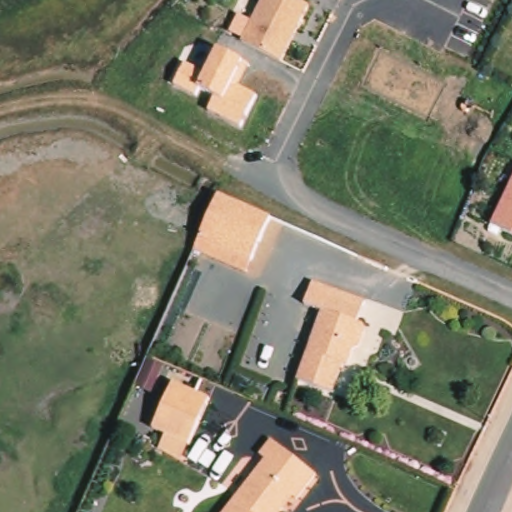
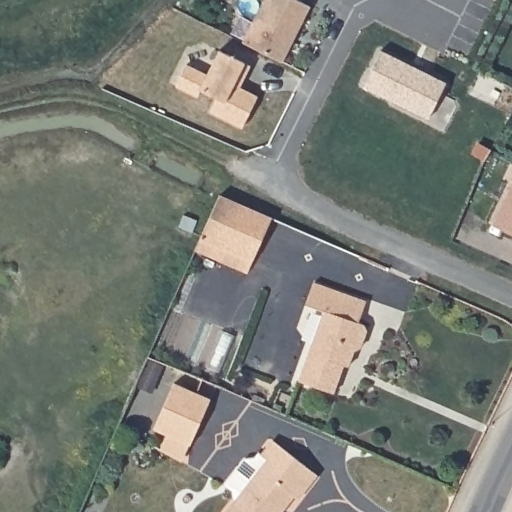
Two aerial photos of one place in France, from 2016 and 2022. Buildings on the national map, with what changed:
unchanged [(310,7),(281,63),(239,41),(261,0),(296,0),(310,7)]
new [(380,50),(445,83),(427,119),(362,86),(380,50)]
unchanged [(207,73),(216,51),(248,66),(239,87),(256,96),(241,127),(209,113),(215,97),(200,89),(196,96),(176,87),(187,64),(207,73)]
unchanged [(512,185),(512,235),(492,227),(512,185)]
unchanged [(198,246),(201,238),(203,235),(204,233),(222,191),(274,215),(255,258),(250,270),(198,246)]
unchanged [(302,305),(311,283),(362,305),(355,325),(365,329),(366,338),(357,361),(351,359),(345,374),(338,371),(327,399),(293,385),(322,312),(302,305)]
unchanged [(210,401),(192,446),(153,433),(172,385),(210,401)]
unchanged [(270,443),(313,479),(295,504),(290,501),(281,512),(227,512),(266,464),(258,458),(270,443)]

